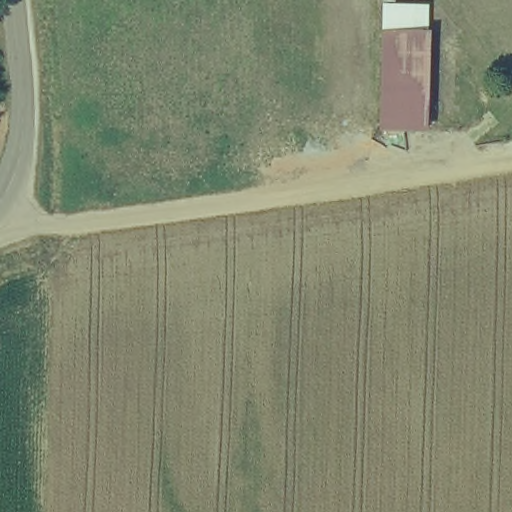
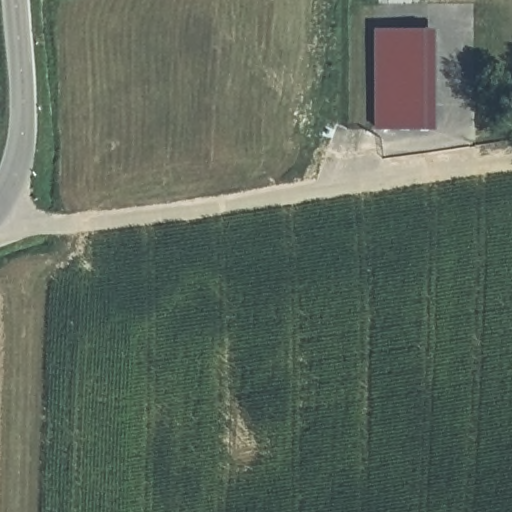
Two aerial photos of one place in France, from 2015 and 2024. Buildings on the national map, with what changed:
unchanged [(425,131),(377,128),(378,22),(428,30),(425,131)]

